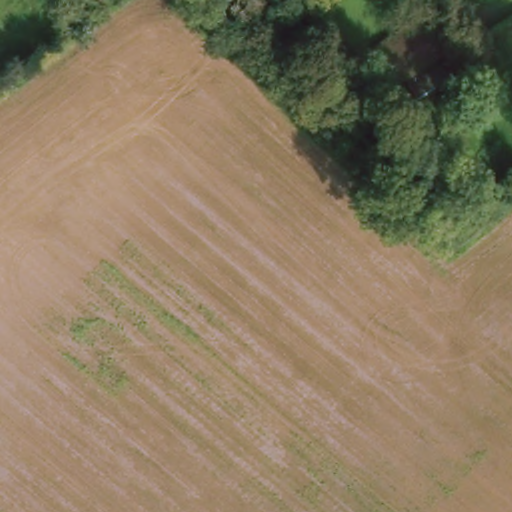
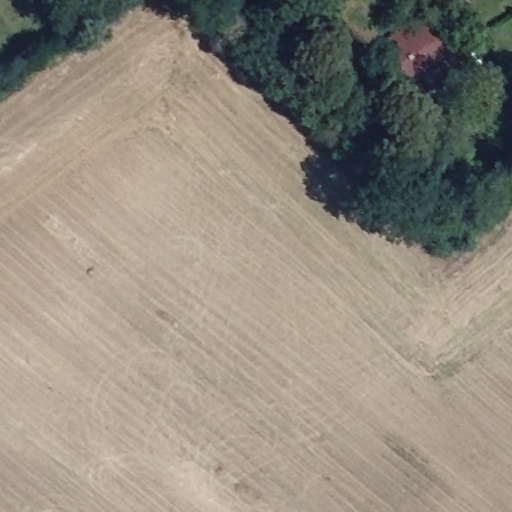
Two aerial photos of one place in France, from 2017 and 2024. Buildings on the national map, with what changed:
unchanged [(422,21),(443,58),(434,66),(445,86),(427,96),(415,78),(396,89),(372,48),(422,21)]

